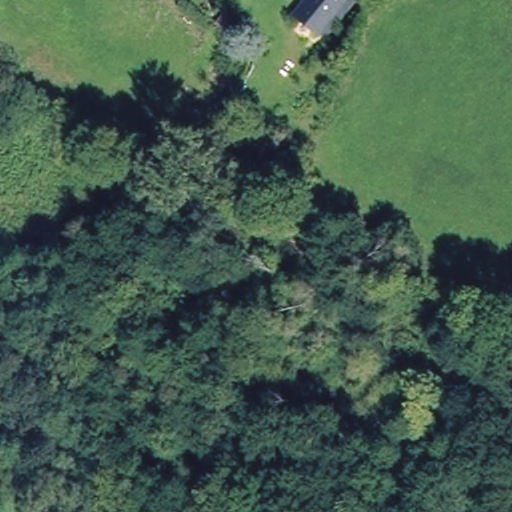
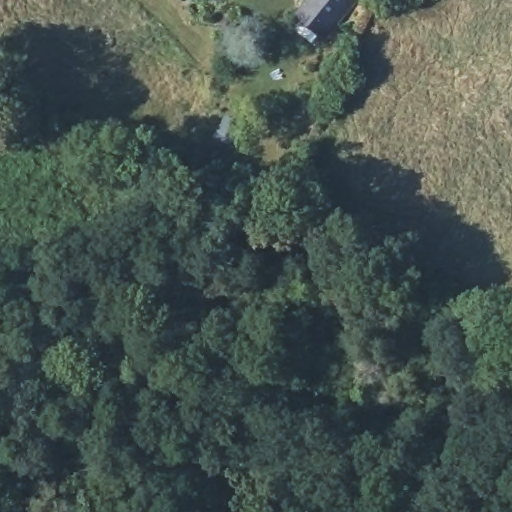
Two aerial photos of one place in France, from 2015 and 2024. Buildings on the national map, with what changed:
unchanged [(290,17),(301,0),(343,0),(322,36),(290,17)]

